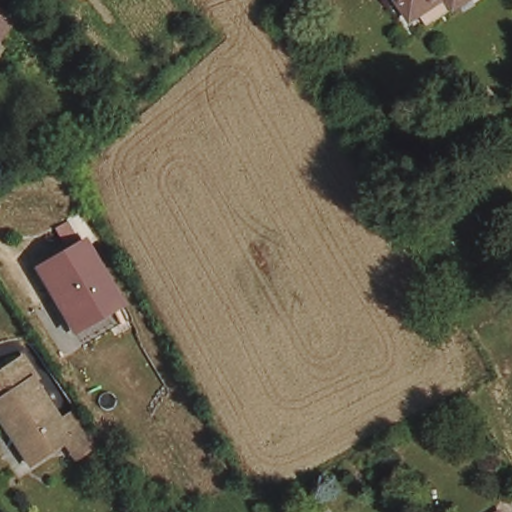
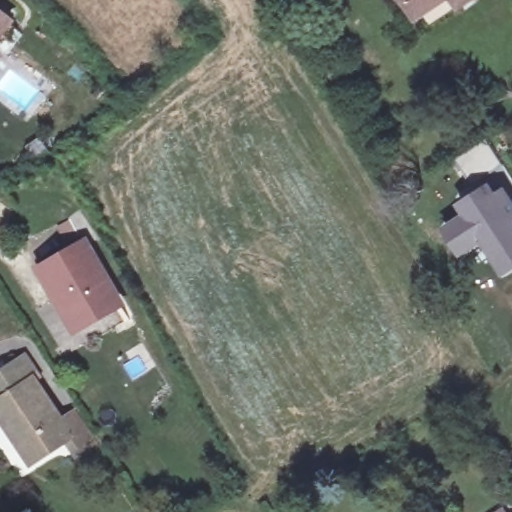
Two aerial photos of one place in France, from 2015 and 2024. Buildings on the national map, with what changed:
unchanged [(419,17),(405,0),(437,0),(439,3),(419,17)]
unchanged [(439,3),(437,0),(442,0),(439,3)]
unchanged [(0,45),(0,7),(17,19),(0,45)]
new [(487,139),(503,166),(472,185),(456,159),(487,139)]
new [(461,218),(454,208),(483,190),(490,199),(498,194),(512,216),(512,220),(506,224),(512,235),(512,263),(496,273),(477,243),(456,256),(440,231),(461,218)]
unchanged [(79,235),(114,291),(72,318),(37,262),(79,235)]
unchanged [(0,388),(0,375),(24,357),(36,375),(31,380),(53,414),(69,439),(61,445),(29,468),(9,437),(0,425),(0,405),(7,399),(0,388)]
unchanged [(73,403),(99,449),(72,464),(61,445),(69,439),(53,414),(73,403)]
unchanged [(505,512),(493,512),(501,506),(505,512)]

